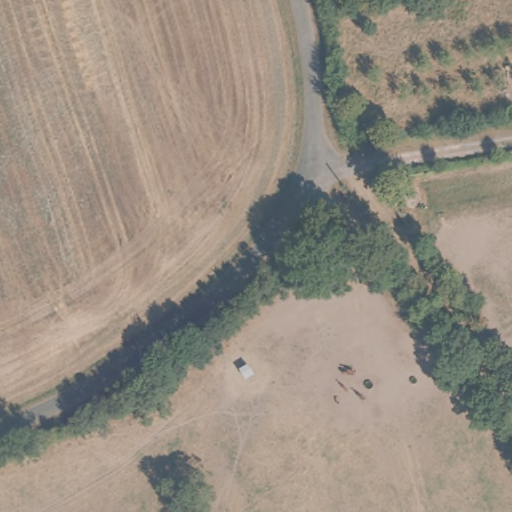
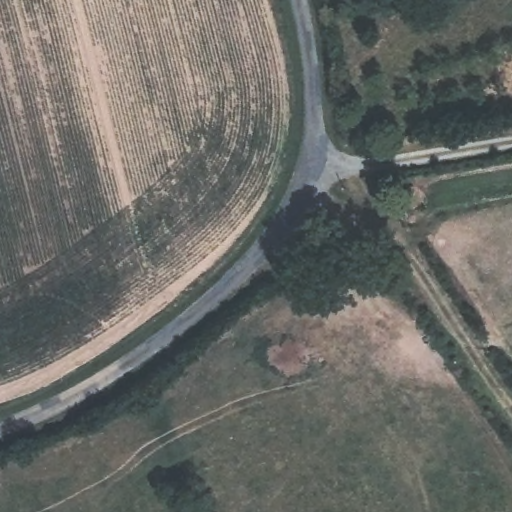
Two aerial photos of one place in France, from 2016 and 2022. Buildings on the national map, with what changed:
[]

